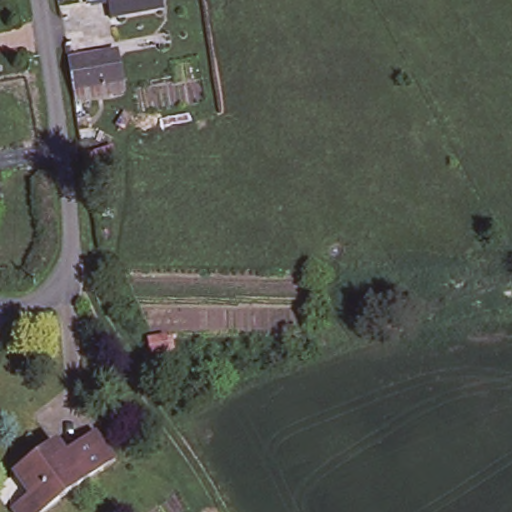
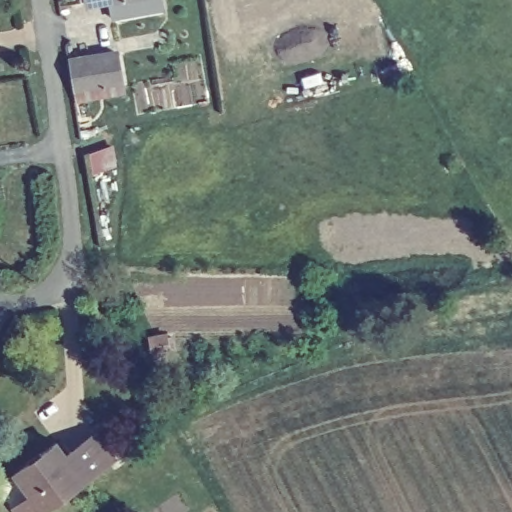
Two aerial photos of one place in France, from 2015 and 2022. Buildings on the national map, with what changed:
unchanged [(106,13),(104,0),(157,0),(157,3),(106,13)]
unchanged [(68,54),(117,45),(122,75),(124,88),(75,95),(72,83),(68,54)]
unchanged [(65,454),(93,434),(112,458),(82,479),(65,454)]
unchanged [(12,509),(30,494),(13,473),(55,442),(65,454),(82,479),(40,510),(38,512),(13,512),(12,509)]

